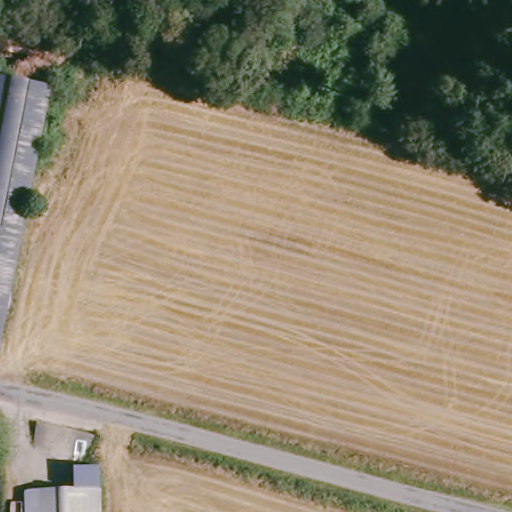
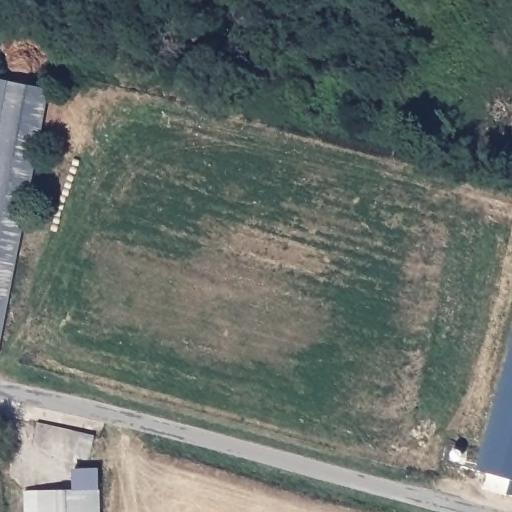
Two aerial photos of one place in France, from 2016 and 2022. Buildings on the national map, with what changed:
unchanged [(0,331),(0,78),(50,88),(0,331)]
new [(477,470),(512,347),(512,478),(477,470)]
unchanged [(29,489),(81,487),(80,466),(100,466),(101,512),(30,512),(29,489)]

